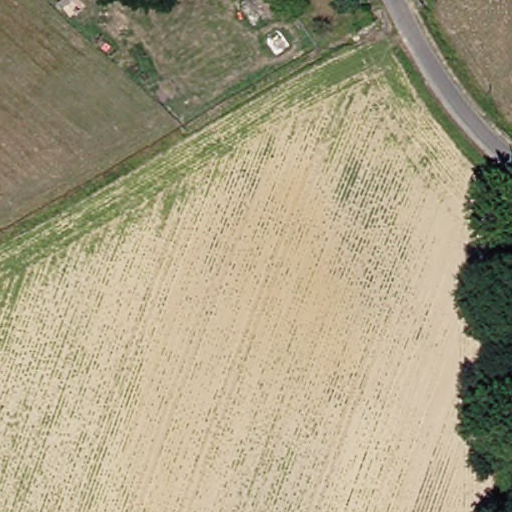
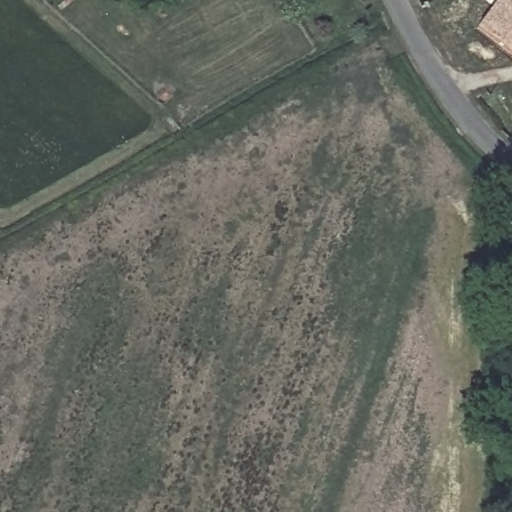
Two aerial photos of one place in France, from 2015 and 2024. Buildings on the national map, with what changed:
new [(475,26),(495,0),(512,0),(512,54),(475,26)]

